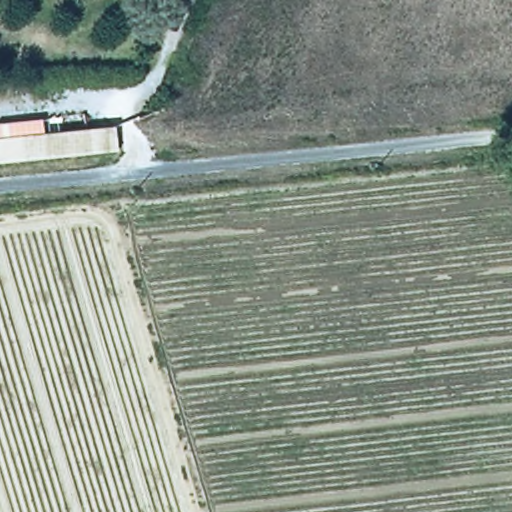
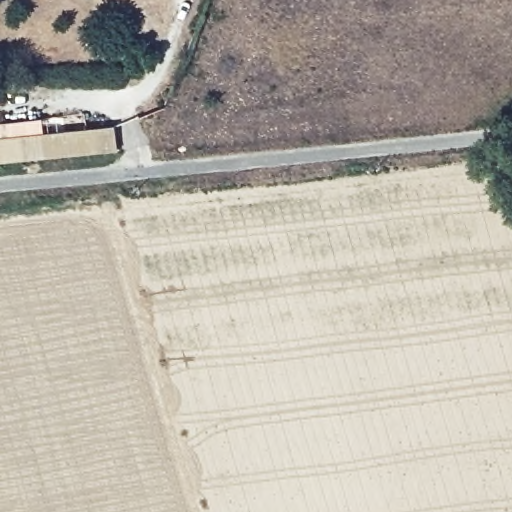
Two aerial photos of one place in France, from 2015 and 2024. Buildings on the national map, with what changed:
unchanged [(114,125),(117,151),(0,162),(0,136),(114,125)]

